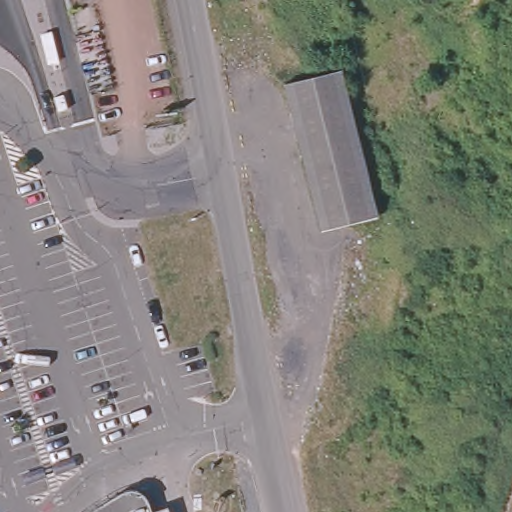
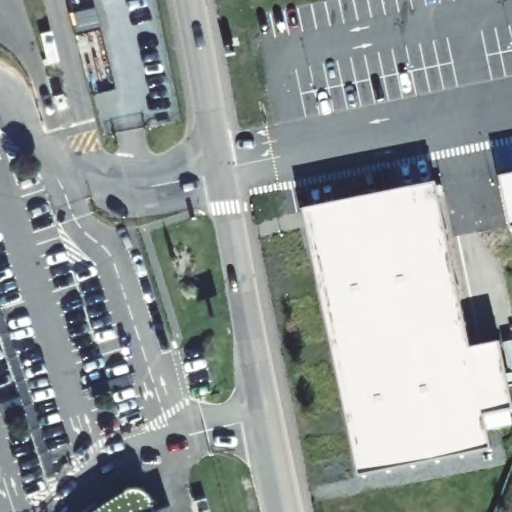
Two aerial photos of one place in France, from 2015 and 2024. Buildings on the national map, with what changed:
demolished [(340,67),(355,129),(374,217),(318,230),(285,79),(340,67)]
new [(512,172),(512,225),(510,225),(500,174),(512,172)]
new [(439,189),(451,229),(483,229),(512,414),(512,453),(344,483),(295,205),(439,189)]
unchanged [(102,502),(110,497),(118,493),(124,491),(130,492),(135,493),(140,496),(145,499),(148,504),(149,506),(151,512),(91,512),(95,508),(102,502)]

